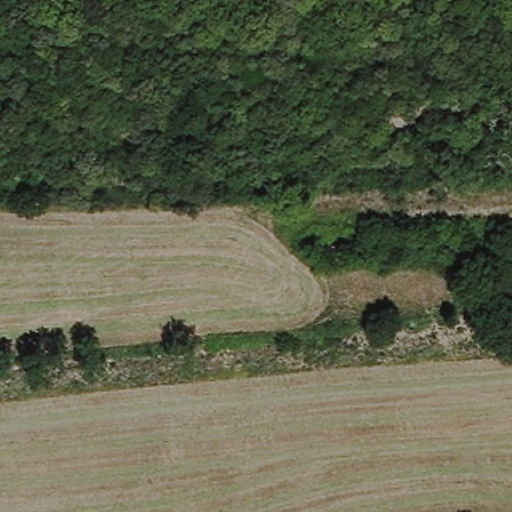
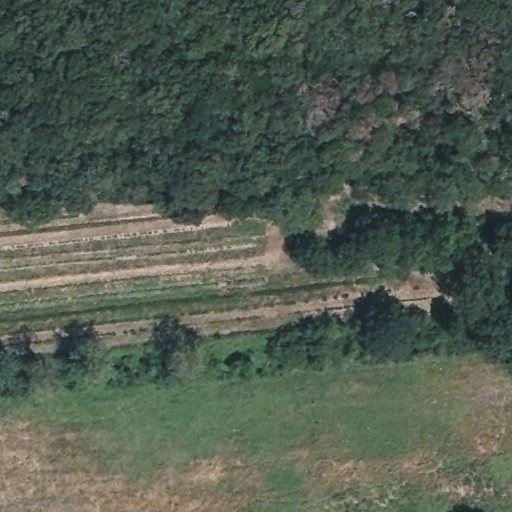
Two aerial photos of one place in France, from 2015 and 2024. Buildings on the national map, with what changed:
unchanged [(424,108),(423,129),(399,124),(403,108),(424,108)]

